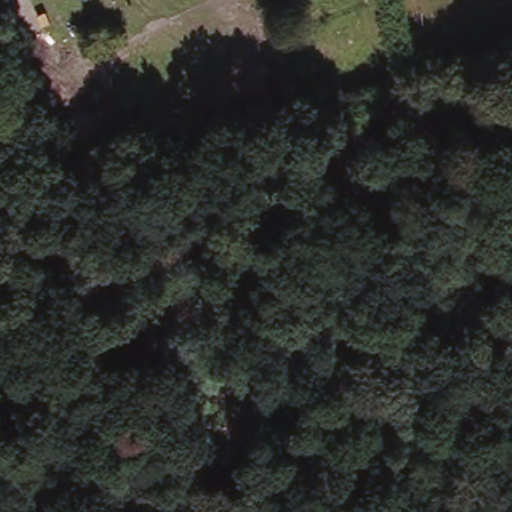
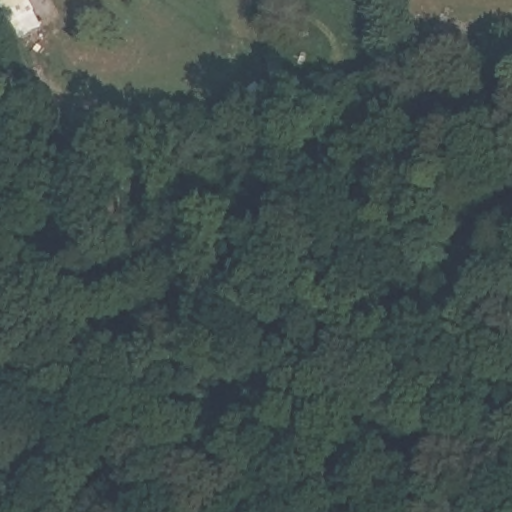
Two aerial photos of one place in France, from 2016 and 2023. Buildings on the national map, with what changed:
[]

